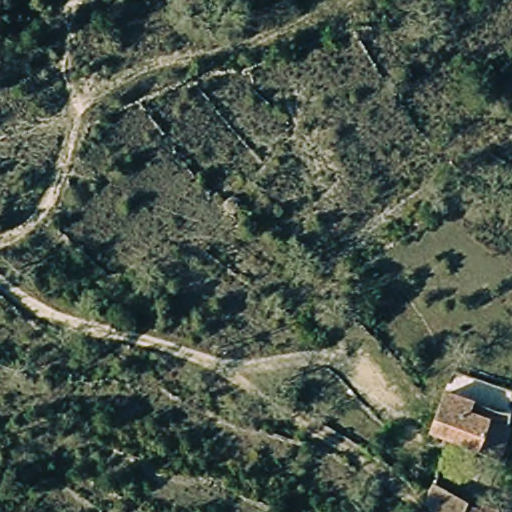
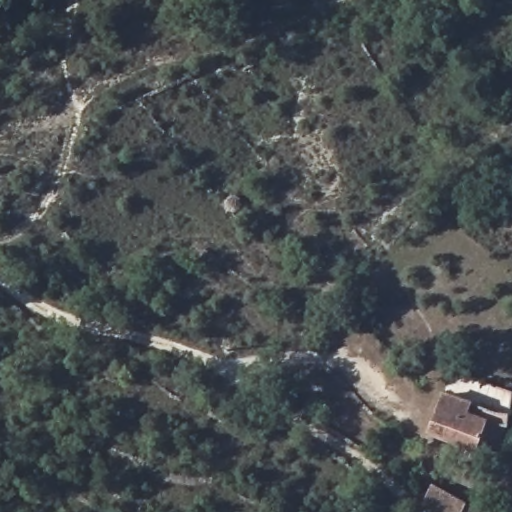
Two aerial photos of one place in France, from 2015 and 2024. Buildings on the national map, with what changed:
unchanged [(480,446),(473,463),(422,439),(440,401),(450,405),(490,424),(505,431),(496,453),(480,446)]
unchanged [(426,512),(423,510),(436,488),(475,508),(473,512),(426,512)]

